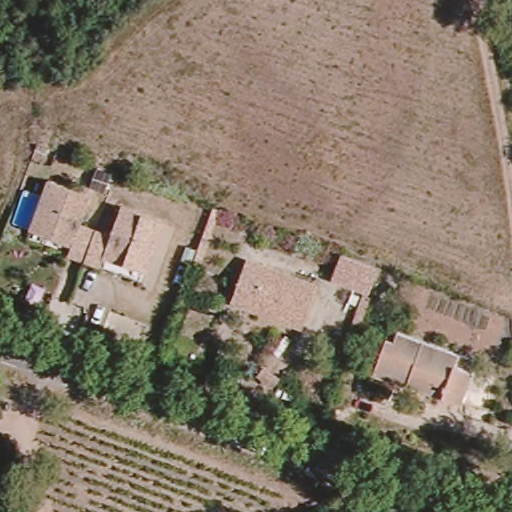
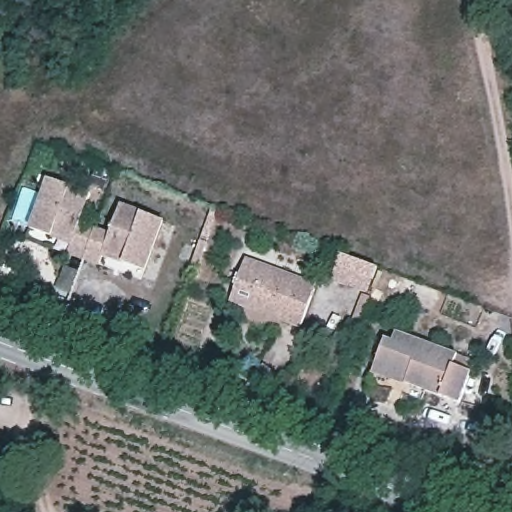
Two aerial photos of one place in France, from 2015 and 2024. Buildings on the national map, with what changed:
unchanged [(25,226),(47,175),(88,192),(76,222),(90,227),(78,257),(65,252),(67,247),(48,237),(25,226)]
unchanged [(95,257),(93,264),(78,257),(90,227),(105,234),(117,205),(158,222),(138,272),(121,265),(120,267),(95,257)]
unchanged [(234,214),(225,240),(213,236),(223,210),(234,214)]
unchanged [(203,266),(211,245),(222,248),(214,269),(203,266)]
unchanged [(385,295),(343,280),(351,258),(393,274),(385,295)]
unchanged [(250,262),(318,285),(303,325),(236,301),(250,262)]
unchanged [(458,407),(425,395),(373,376),(386,342),(394,345),(397,336),(473,365),(458,407)]

